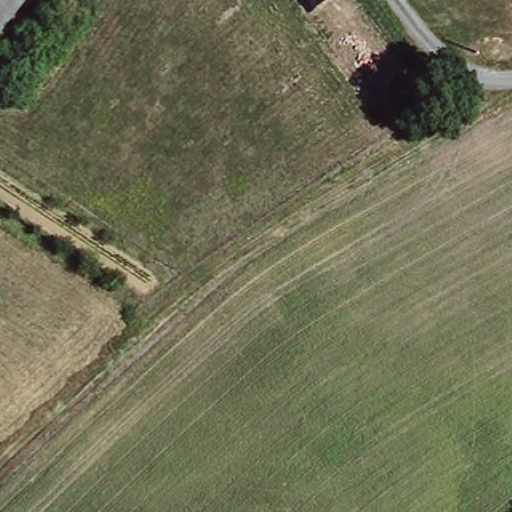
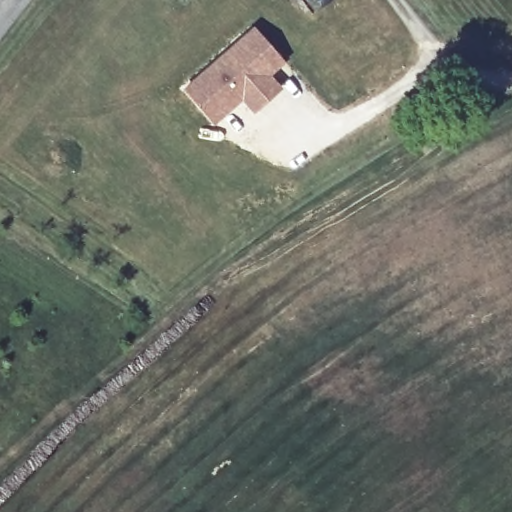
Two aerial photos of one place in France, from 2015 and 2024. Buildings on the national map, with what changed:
unchanged [(0,0),(31,0),(0,37),(0,0)]
unchanged [(329,0),(312,11),(304,0),(329,0)]
demolished [(443,0),(437,3),(435,0),(443,0)]
new [(182,88),(252,26),(285,62),(270,74),(280,89),(254,111),(242,98),(213,124),(182,88)]

